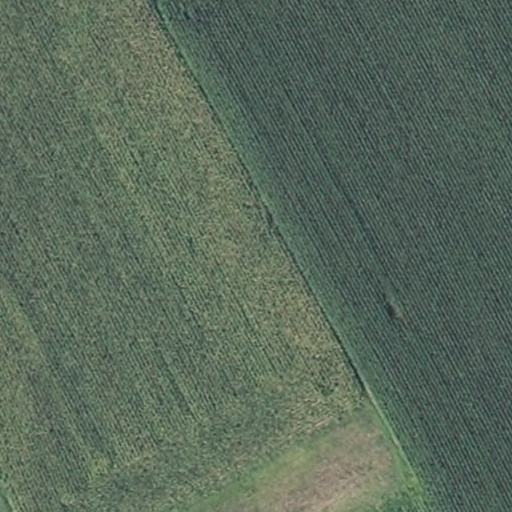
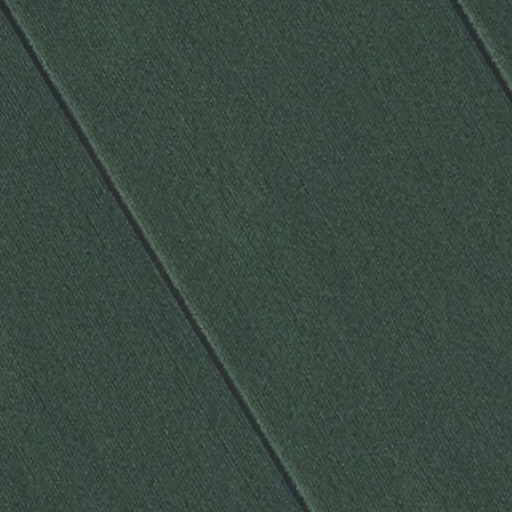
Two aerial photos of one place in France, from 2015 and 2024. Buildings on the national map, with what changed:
[]

